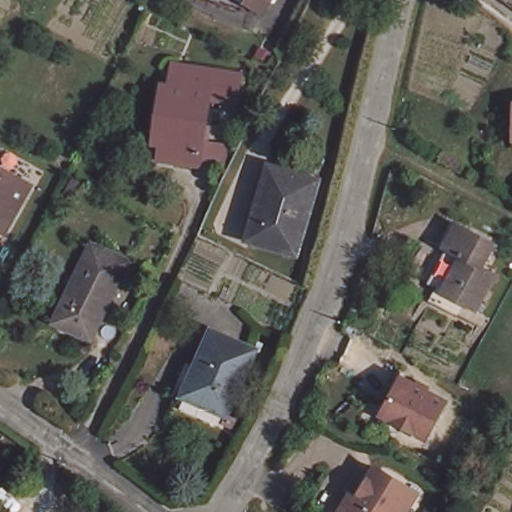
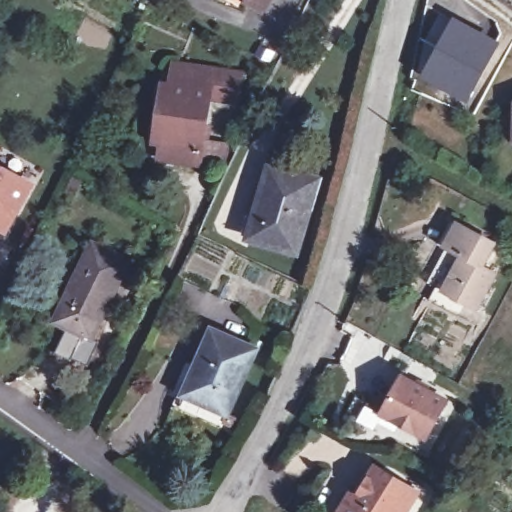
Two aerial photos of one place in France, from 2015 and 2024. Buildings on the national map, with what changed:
unchanged [(267,12),(252,2),(254,0),(276,0),(267,12)]
new [(450,13),(501,41),(467,104),(416,75),(450,13)]
unchanged [(242,103),(214,98),(204,164),(165,158),(167,144),(159,142),(167,82),(176,83),(179,62),(192,64),(246,72),(242,103)]
unchanged [(317,179),(295,251),(249,238),(262,190),(265,190),(272,167),(317,179)]
unchanged [(5,232),(0,229),(0,170),(30,187),(5,232)]
unchanged [(463,316),(434,300),(442,287),(434,283),(452,248),(449,246),(442,243),(455,219),(461,223),(500,243),(487,266),(500,274),(482,309),(470,303),(463,316)]
unchanged [(92,340),(54,322),(92,242),(130,260),(92,340)]
unchanged [(226,412),(185,394),(213,331),(254,349),(226,412)]
unchanged [(446,402),(426,439),(382,415),(402,378),(446,402)]
unchanged [(357,499),(377,468),(417,493),(405,512),(342,512),(352,496),(357,499)]

